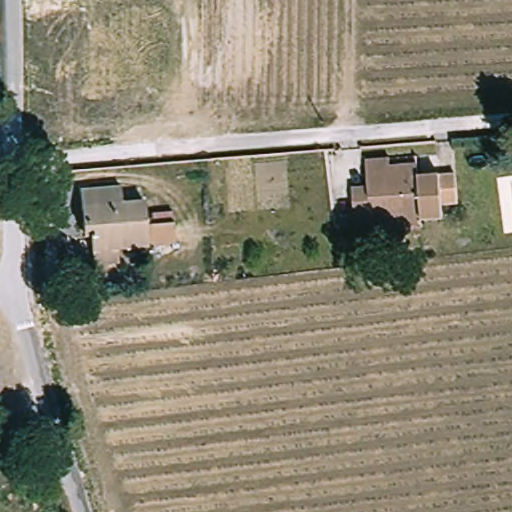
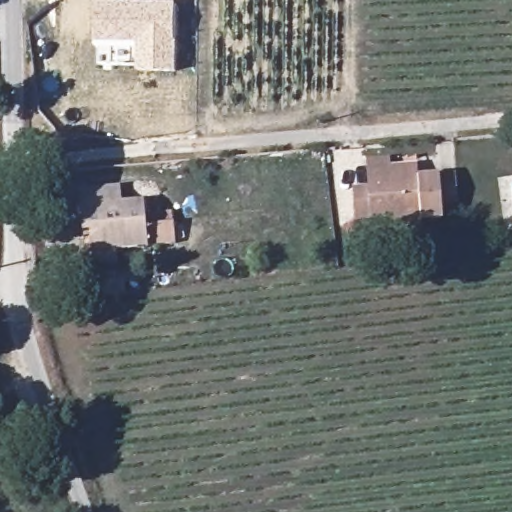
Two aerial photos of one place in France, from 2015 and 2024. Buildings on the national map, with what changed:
new [(177,72),(139,71),(139,42),(95,42),(96,3),(177,3),(177,40),(178,40),(177,72)]
unchanged [(358,196),(357,186),(372,185),(371,170),(370,156),(394,154),(395,168),(424,166),(425,177),(460,176),(462,205),(445,206),(445,220),(426,222),(378,226),(360,227),(358,196)]
unchanged [(93,261),(93,249),(91,231),(82,231),(80,190),(122,185),(123,203),(164,200),(165,220),(179,220),(179,240),(157,242),(158,261),(147,262),(146,243),(119,246),(120,259),(93,261)]

